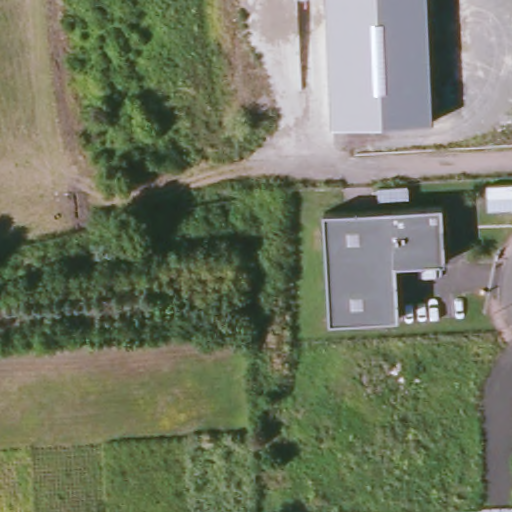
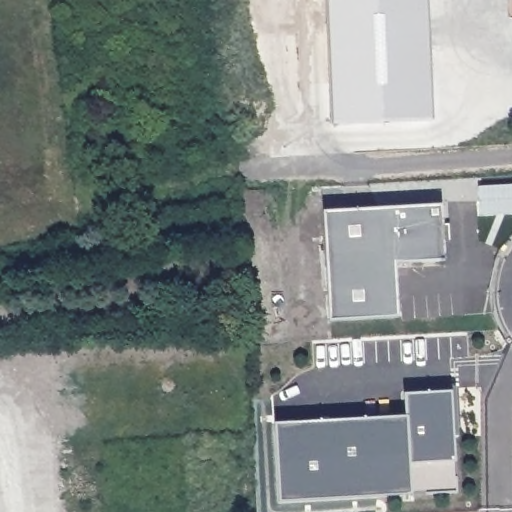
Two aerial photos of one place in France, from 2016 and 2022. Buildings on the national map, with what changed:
unchanged [(330,123),(326,0),(427,0),(431,120),(330,123)]
unchanged [(332,325),(325,215),(445,208),(447,265),(399,268),(402,321),(332,325)]
new [(457,461),(457,490),(412,494),(280,502),(275,423),(406,415),(405,394),(453,391),(457,461)]

